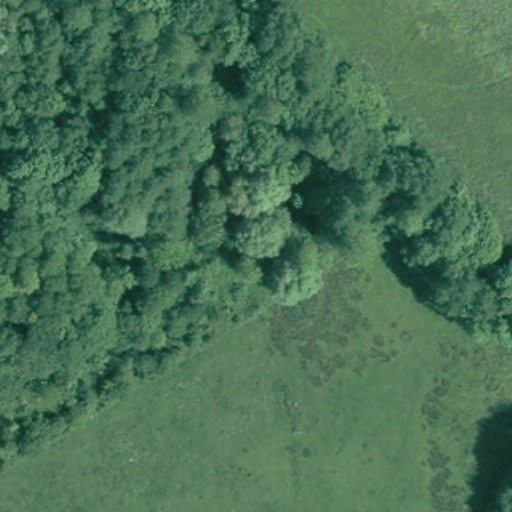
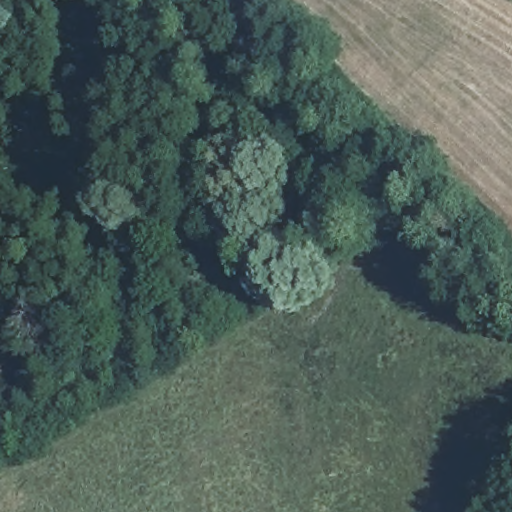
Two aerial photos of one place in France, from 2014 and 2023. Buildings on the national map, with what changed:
unchanged [(484,228),(502,230),(500,248),(482,246),(484,228)]

